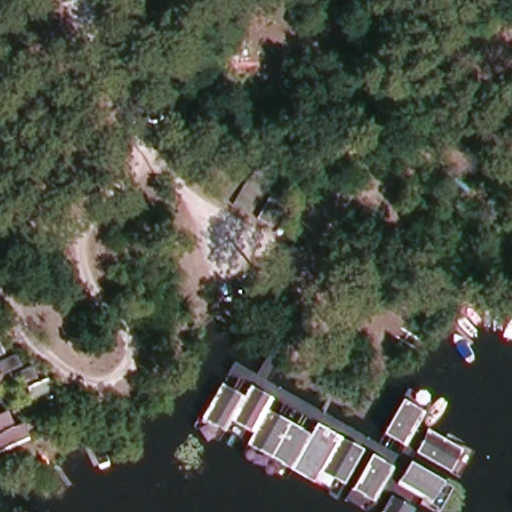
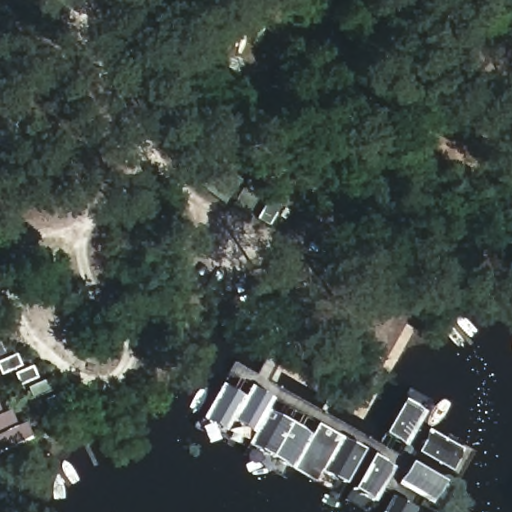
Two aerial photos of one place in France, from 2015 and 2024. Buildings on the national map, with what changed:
unchanged [(307,13),(300,17),(290,14),(285,5),(285,0),(312,0),(313,6),(307,13)]
unchanged [(240,178),(224,203),(199,186),(215,161),(240,178)]
unchanged [(260,191),(244,217),(232,207),(247,182),(260,191)]
unchanged [(282,204),(265,229),(252,221),(268,195),(282,204)]
unchanged [(2,374),(0,368),(0,344),(1,344),(5,356),(18,354),(23,366),(2,374)]
unchanged [(53,415),(37,383),(50,380),(55,392),(63,389),(71,406),(53,415)]
unchanged [(236,421),(227,434),(201,418),(222,383),(247,399),(236,421)]
unchanged [(258,435),(236,421),(247,399),(255,385),(278,398),(272,410),(258,435)]
unchanged [(384,433),(403,400),(425,414),(404,447),(384,433)]
unchanged [(291,468),(251,445),(258,435),(272,410),(311,434),(291,468)]
unchanged [(0,450),(0,414),(6,428),(13,425),(20,441),(0,450)]
unchanged [(321,472),(315,482),(291,468),(311,434),(318,421),(344,436),(321,472)]
unchanged [(419,450),(431,430),(462,449),(450,471),(419,450)]
unchanged [(365,449),(342,485),(321,472),(344,436),(365,449)]
unchanged [(353,486),(375,453),(395,464),(373,499),(353,486)]
unchanged [(402,483),(414,463),(443,480),(432,502),(402,483)]
unchanged [(391,497),(414,512),(383,512),(391,497)]

